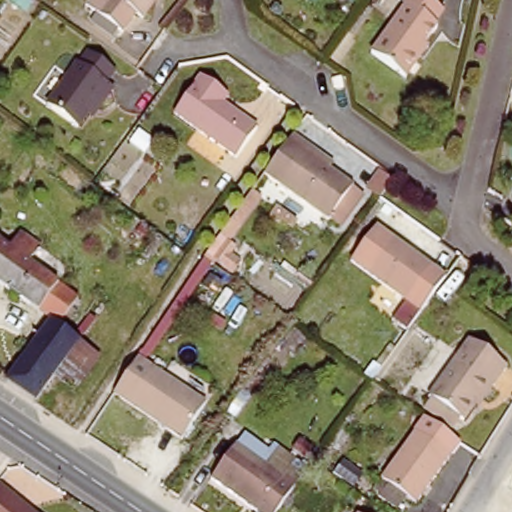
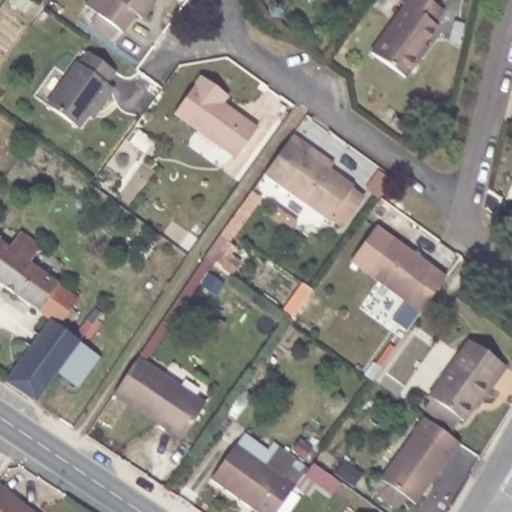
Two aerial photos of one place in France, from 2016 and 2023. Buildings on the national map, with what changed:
unchanged [(125,25),(89,0),(151,0),(143,11),(138,7),(125,25)]
unchanged [(409,0),(427,0),(446,13),(436,28),(440,31),(422,56),(426,59),(412,80),(377,55),(409,8),(405,6),(409,0)]
unchanged [(89,107),(79,121),(47,99),(88,45),(114,65),(107,74),(115,80),(98,103),(92,110),(89,107)]
unchanged [(237,155),(175,111),(202,74),(221,88),(232,96),(225,104),(257,126),(237,155)]
unchanged [(357,210),(347,224),(337,217),(335,220),(267,172),(294,136),(300,129),(342,159),(337,165),(362,183),(360,185),(370,193),(357,210)]
unchanged [(435,264),(400,313),(386,302),(397,286),(340,244),(362,213),(380,226),(382,225),(435,264)]
unchanged [(5,296),(0,293),(0,239),(6,243),(4,245),(13,251),(25,234),(45,248),(32,265),(82,300),(62,328),(85,345),(59,381),(41,406),(0,379),(0,375),(45,315),(10,290),(5,296)]
unchanged [(432,408),(439,400),(434,395),(475,340),(512,367),(512,371),(498,388),(485,405),(481,402),(468,420),(463,417),(457,426),(432,408)]
unchanged [(85,345),(105,358),(79,395),(59,381),(85,345)]
unchanged [(207,406),(183,441),(114,392),(137,356),(207,406)]
unchanged [(387,497),(395,486),(390,483),(434,421),(467,445),(422,506),(419,503),(413,512),(409,512),(387,497)]
unchanged [(300,484),(280,512),(266,512),(216,475),(241,440),(300,484)]
unchanged [(0,484),(35,512),(0,512),(0,484)]

